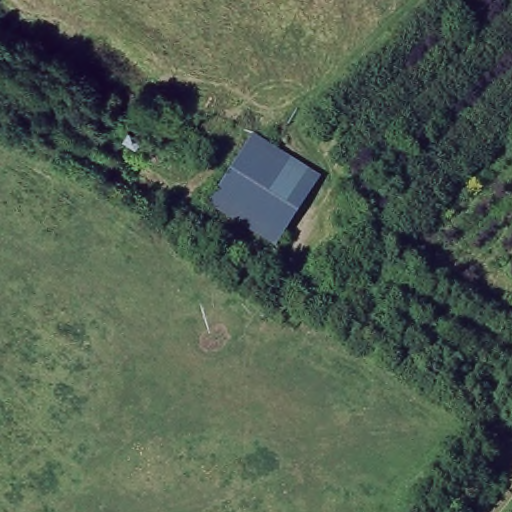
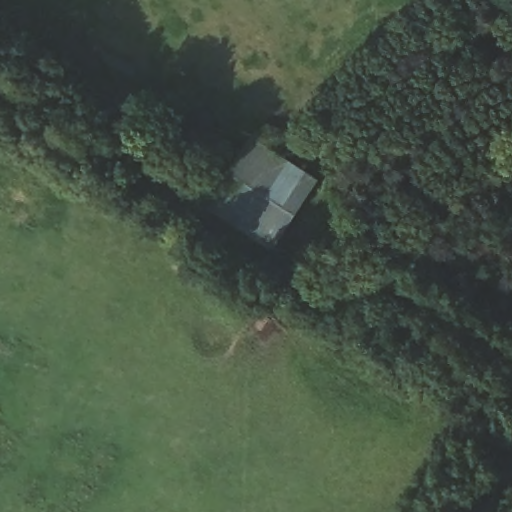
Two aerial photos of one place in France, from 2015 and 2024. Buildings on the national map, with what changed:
unchanged [(272,247),(203,204),(249,129),(319,176),(272,247)]

